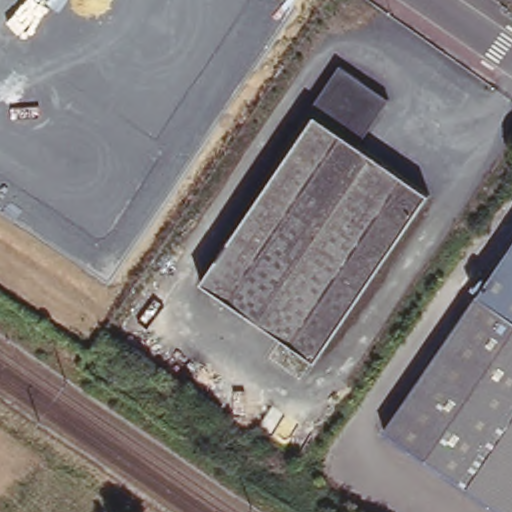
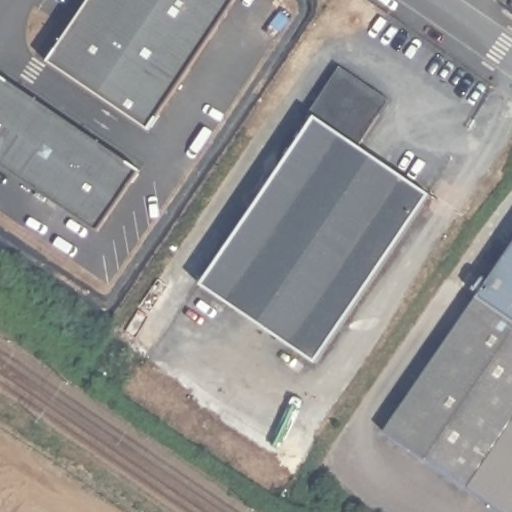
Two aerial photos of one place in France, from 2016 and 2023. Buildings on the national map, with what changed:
new [(50,58),(90,0),(230,0),(150,123),(50,58)]
new [(140,160),(98,225),(0,160),(0,65),(140,160)]
unchanged [(319,110),(340,68),(390,100),(360,139),(319,110)]
unchanged [(433,190),(317,359),(204,280),(319,110),(433,190)]
unchanged [(512,243),(512,512),(500,512),(385,432),(512,243)]

